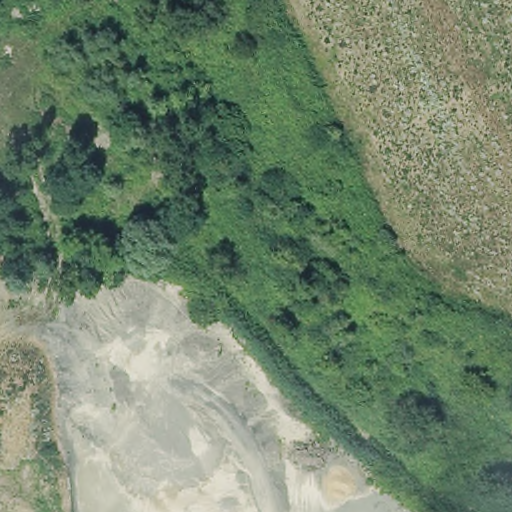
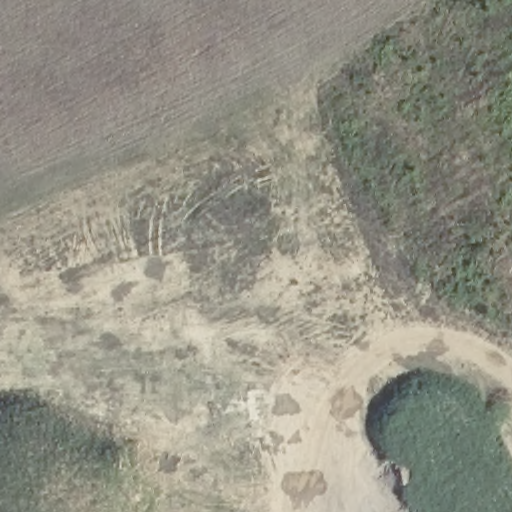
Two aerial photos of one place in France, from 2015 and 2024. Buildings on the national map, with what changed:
[]

